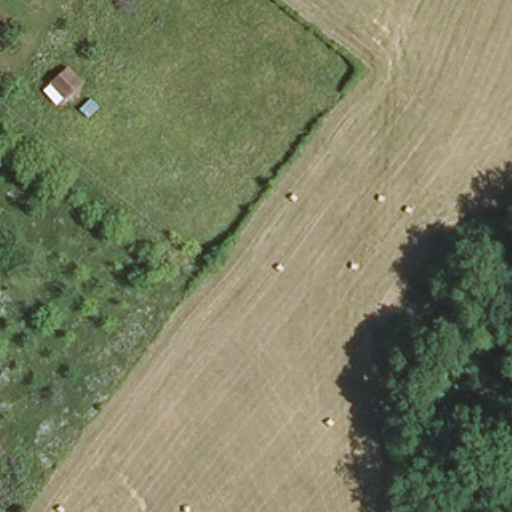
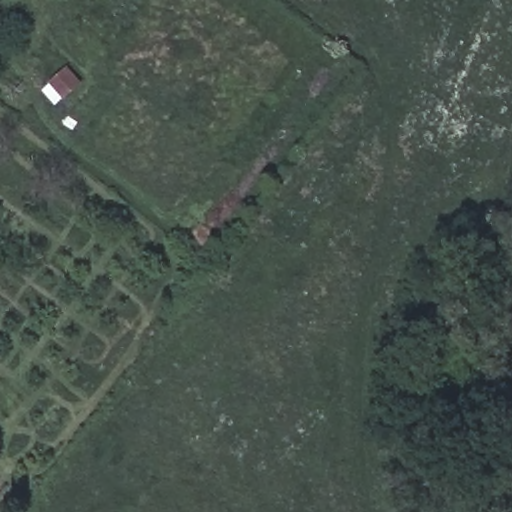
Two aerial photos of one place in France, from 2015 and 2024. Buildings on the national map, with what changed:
unchanged [(88,81),(71,98),(67,94),(68,93),(59,84),(76,68),(88,81)]

